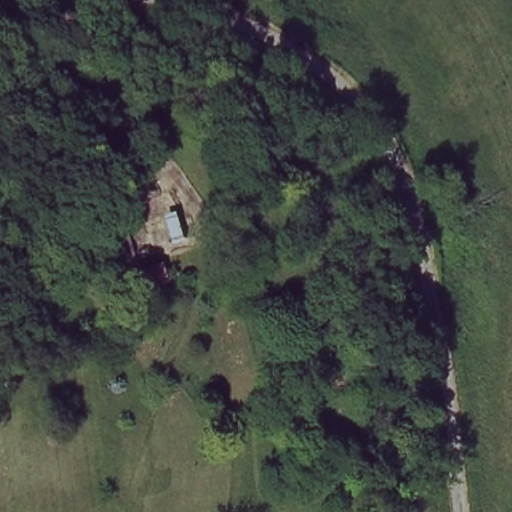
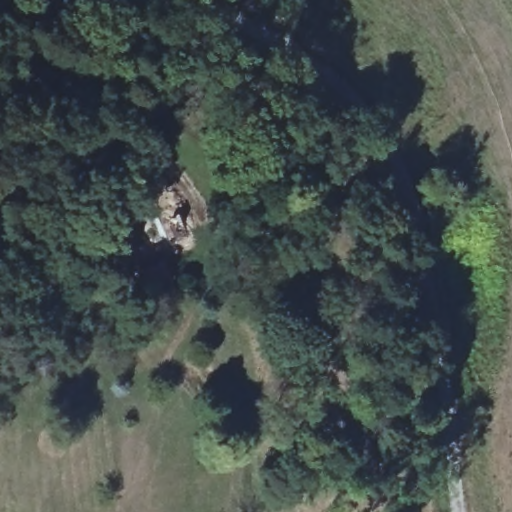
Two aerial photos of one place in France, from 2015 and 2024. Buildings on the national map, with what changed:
unchanged [(189,205),(201,234),(177,243),(164,217),(189,205)]

